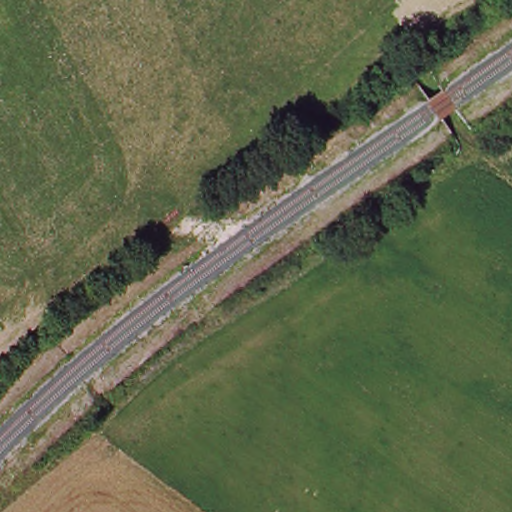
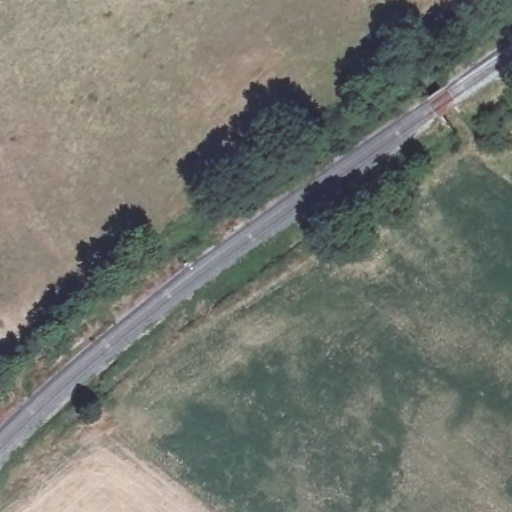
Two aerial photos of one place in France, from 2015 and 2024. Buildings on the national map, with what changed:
[]

